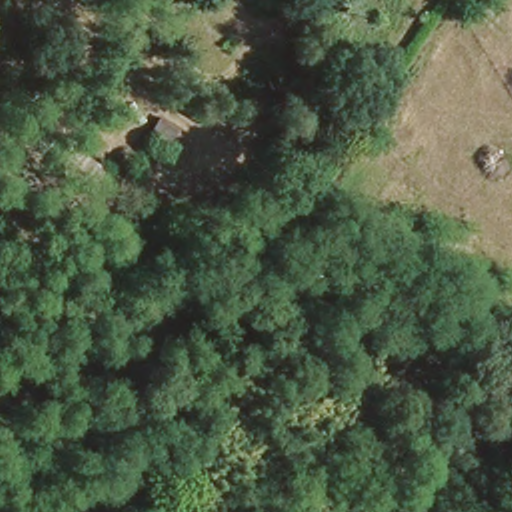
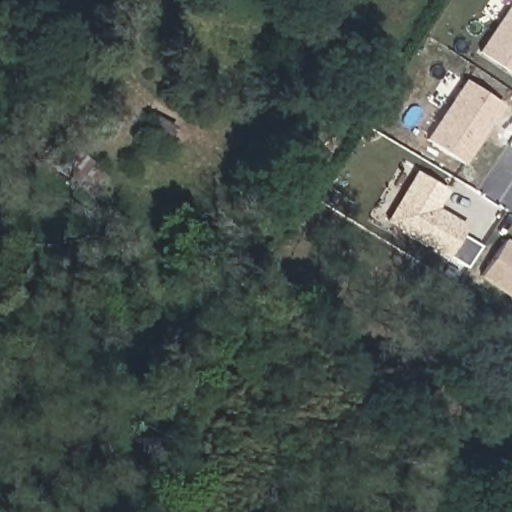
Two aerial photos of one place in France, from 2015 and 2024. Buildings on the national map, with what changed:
new [(474,50),(506,0),(512,0),(512,74),(474,50)]
new [(464,166),(428,140),(466,81),(504,105),(464,166)]
unchanged [(310,159),(300,174),(272,157),(282,142),(310,159)]
new [(444,189),(434,205),(463,222),(446,252),(386,217),(411,169),(444,189)]
new [(512,245),(512,301),(477,275),(503,239),(512,245)]
unchanged [(300,499),(313,507),(320,512),(292,512),(300,499)]

